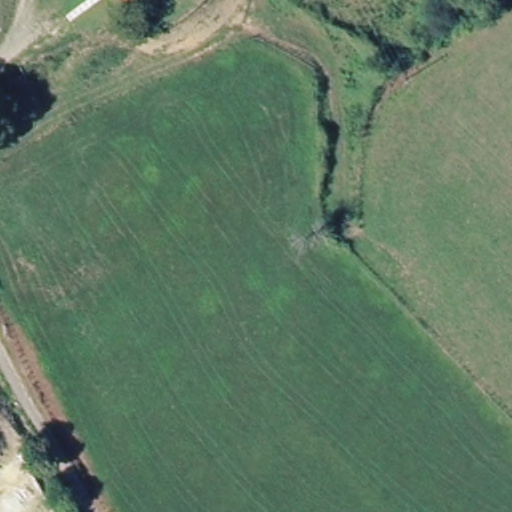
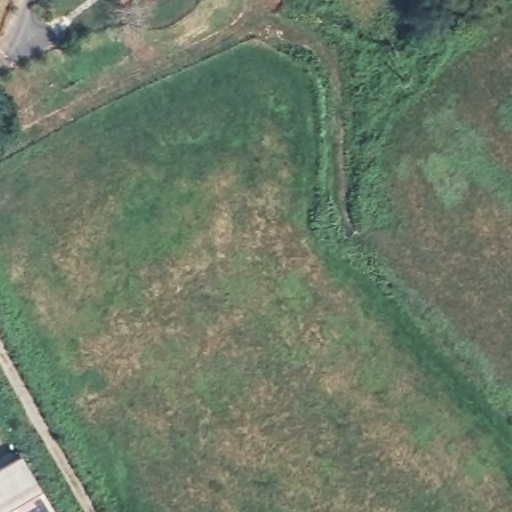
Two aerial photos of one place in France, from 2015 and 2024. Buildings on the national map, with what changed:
new [(0,512),(0,466),(21,454),(56,512),(0,512)]

